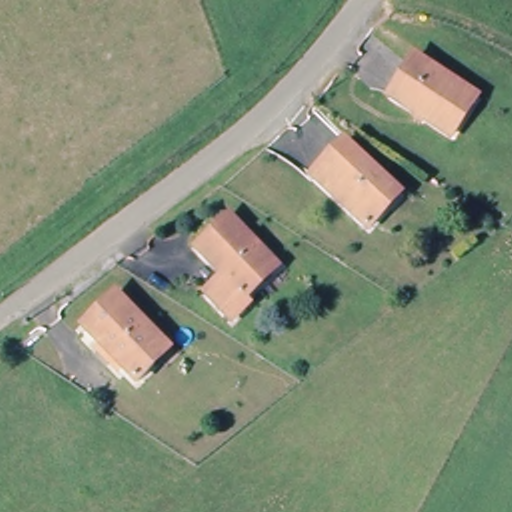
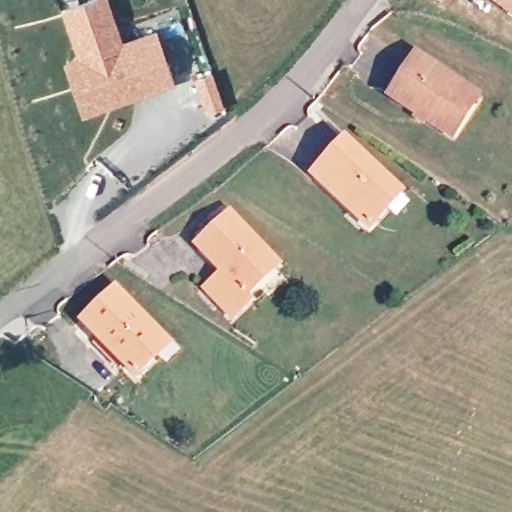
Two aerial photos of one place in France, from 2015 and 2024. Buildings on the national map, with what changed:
new [(109,0),(122,39),(157,27),(175,84),(82,116),(62,60),(76,55),(60,8),(82,0),(109,0)]
new [(512,0),(512,17),(491,0),(512,0)]
unchanged [(453,135),(392,96),(418,55),(480,95),(453,135)]
new [(212,68),(224,105),(205,111),(192,76),(212,68)]
unchanged [(403,192),(367,227),(312,174),(346,139),(403,192)]
unchanged [(244,288),(252,298),(230,320),(206,295),(221,278),(192,250),(231,214),(276,257),(244,288)]
unchanged [(176,348),(138,380),(85,324),(122,291),(176,348)]

